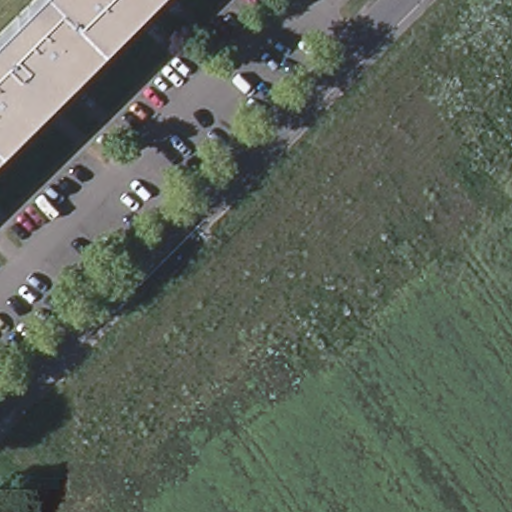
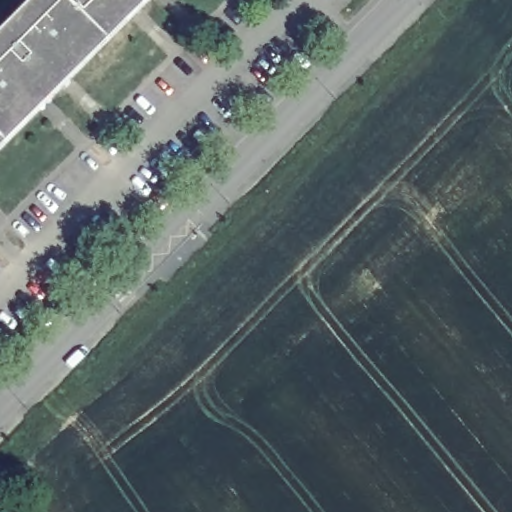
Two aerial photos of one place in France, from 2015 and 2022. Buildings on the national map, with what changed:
unchanged [(39,0),(157,0),(0,156),(0,39),(39,0)]

